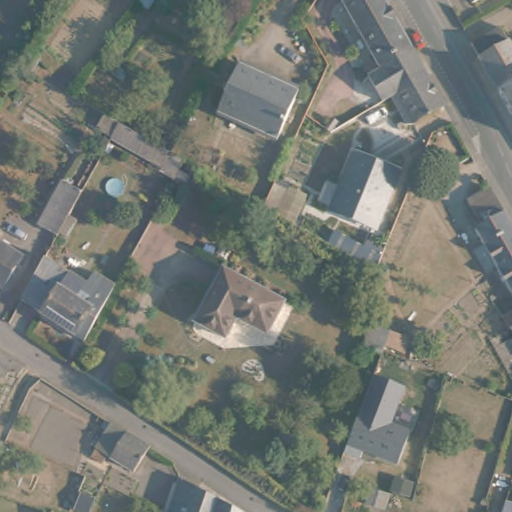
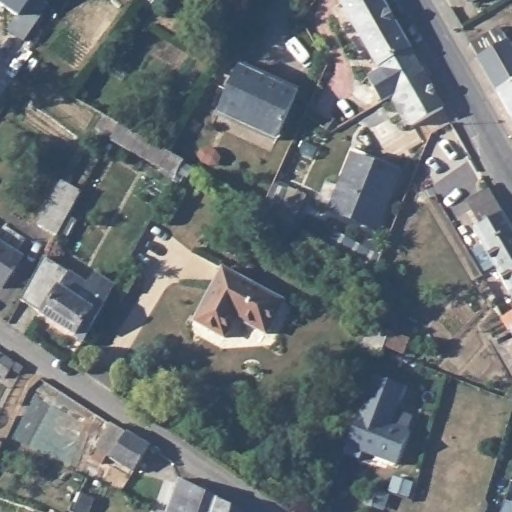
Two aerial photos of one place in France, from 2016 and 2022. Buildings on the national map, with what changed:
new [(24,41),(9,30),(19,16),(0,3),(0,0),(40,0),(49,6),(24,41)]
unchanged [(236,0),(230,9),(219,0),(236,0)]
unchanged [(439,115),(415,127),(397,96),(385,103),(372,80),(384,73),(345,3),(350,0),(385,0),(447,111),(439,115)]
unchanged [(469,0),(481,0),(471,6),(469,0)]
unchanged [(499,26),(509,43),(512,41),(512,116),(470,41),(499,26)]
unchanged [(256,130),(258,126),(221,108),(241,65),(297,92),(276,140),(256,130)]
unchanged [(185,161),(177,175),(112,138),(97,130),(105,116),(120,124),(170,151),(182,159),(185,161)]
unchanged [(328,212),(352,153),(400,174),(377,232),(328,212)]
unchanged [(40,226),(65,182),(82,192),(58,236),(40,226)]
unchanged [(512,287),(507,290),(474,227),(478,225),(465,199),(487,186),(512,228),(512,287)]
unchanged [(263,206),(250,198),(255,188),(268,195),(263,206)]
unchanged [(0,285),(0,241),(21,255),(2,286),(0,285)]
unchanged [(360,248),(373,255),(368,266),(354,258),(360,248)]
unchanged [(22,300),(45,259),(109,297),(86,339),(22,300)]
unchanged [(285,302),(268,336),(237,319),(225,338),(195,321),(225,268),(285,302)]
unchanged [(512,298),(507,290),(512,287),(512,298)]
unchanged [(507,328),(500,315),(512,307),(512,325),(510,327),(507,328)]
unchanged [(402,353),(382,346),(381,349),(380,353),(360,345),(368,323),(389,330),(407,337),(402,353)]
unchanged [(512,325),(512,330),(510,327),(512,325)]
unchanged [(25,368),(20,376),(11,371),(7,377),(0,372),(0,351),(25,368)]
unchanged [(391,425),(408,431),(396,466),(346,447),(372,377),(404,388),(391,425)]
unchanged [(512,404),(510,409),(489,401),(492,391),(512,397),(512,404)]
unchanged [(136,439),(150,447),(149,449),(135,472),(109,456),(104,464),(92,457),(111,423),(136,439)]
unchanged [(4,445),(0,454),(0,443),(4,445)]
unchanged [(180,478),(180,479),(244,512),(170,512),(180,478)]
unchanged [(512,505),(510,512),(500,512),(504,497),(512,499),(512,505)]

